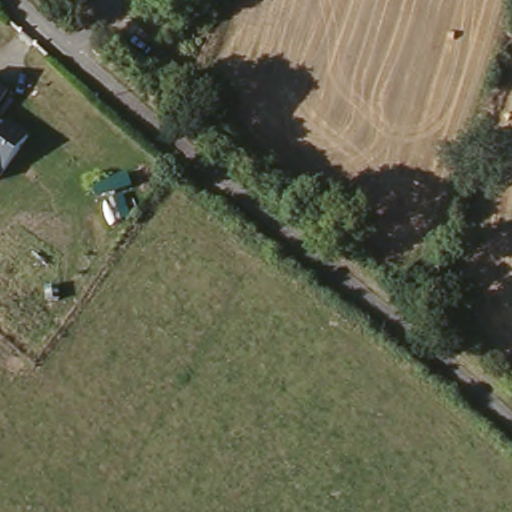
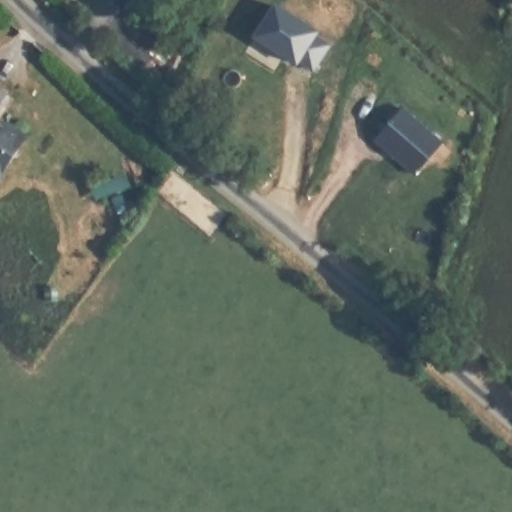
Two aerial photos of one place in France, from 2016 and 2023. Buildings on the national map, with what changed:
new [(296,66),(254,37),(277,3),(321,32),(318,37),(332,46),(314,75),(296,66)]
unchanged [(7,97),(0,110),(0,90),(7,97)]
new [(372,141),(403,107),(445,144),(415,177),(372,141)]
unchanged [(29,142),(0,177),(0,123),(29,142)]

